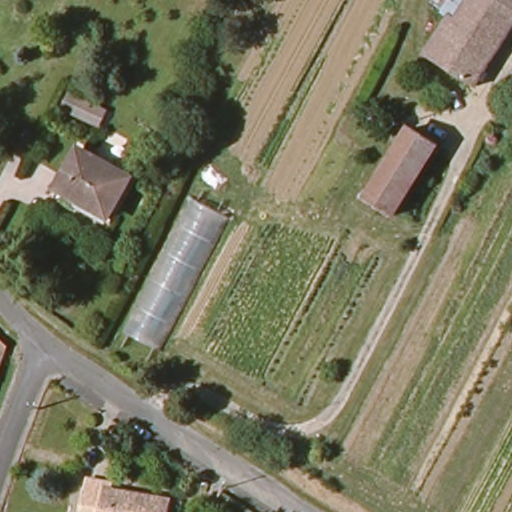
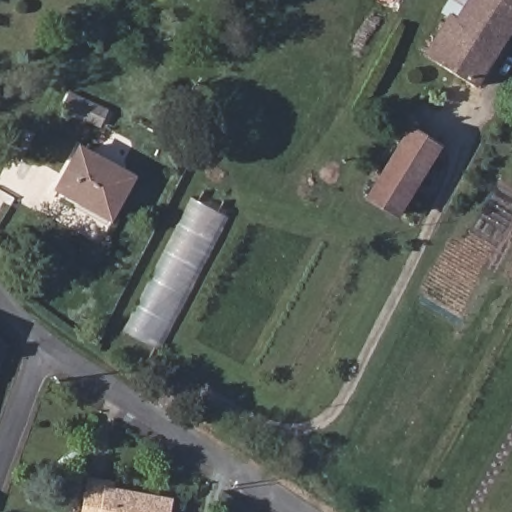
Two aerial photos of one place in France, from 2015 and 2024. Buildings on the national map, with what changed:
unchanged [(482,92),(429,59),(431,55),(455,19),(451,16),(447,15),(456,0),(512,0),(512,44),(482,92)]
unchanged [(78,103),(115,122),(107,137),(71,118),(78,103)]
unchanged [(400,221),(372,202),(413,134),(442,151),(400,221)]
unchanged [(139,178),(115,224),(61,197),(87,150),(139,178)]
unchanged [(232,221),(162,352),(127,335),(197,202),(232,221)]
unchanged [(91,512),(96,490),(97,482),(120,487),(118,495),(179,507),(178,512),(91,512)]

